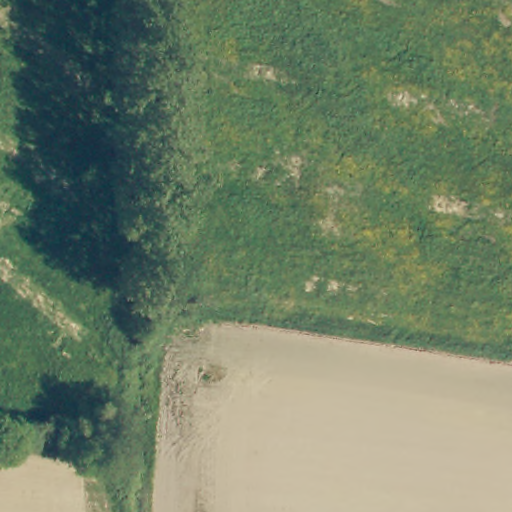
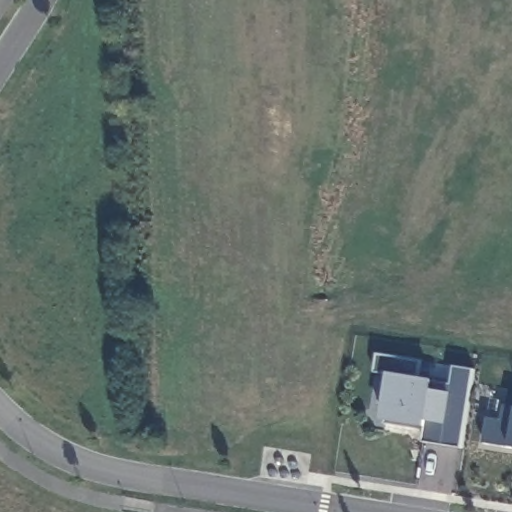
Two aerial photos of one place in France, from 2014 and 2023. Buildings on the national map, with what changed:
new [(465,448),(427,442),(429,431),(392,425),(395,422),(384,419),(391,376),(376,374),(380,354),(426,361),(425,378),(439,380),(439,384),(454,386),(459,367),(480,370),(465,448)]
new [(488,443),(492,418),(507,421),(509,405),(512,405),(512,447),(488,443)]

